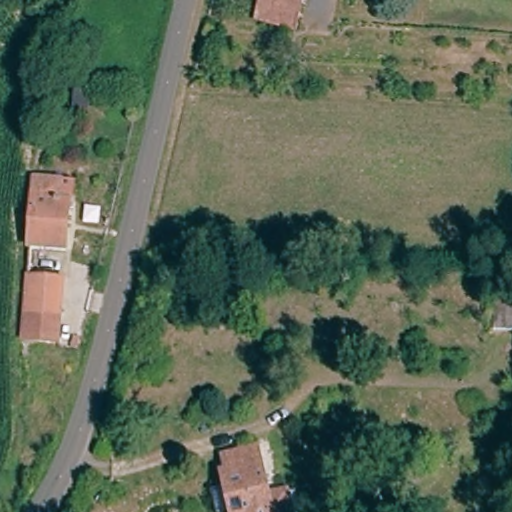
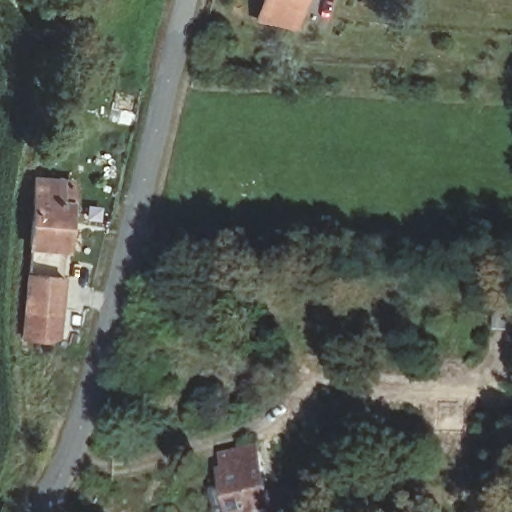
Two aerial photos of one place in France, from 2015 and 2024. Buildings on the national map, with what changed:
unchanged [(292,28),(257,18),(261,0),(300,0),(292,28)]
unchanged [(69,181),(62,249),(28,247),(33,177),(69,181)]
unchanged [(26,272),(60,275),(55,334),(22,332),(26,272)]
unchanged [(497,295),(512,295),(512,335),(495,334),(497,295)]
unchanged [(217,456),(215,442),(248,435),(257,484),(275,481),(279,499),(281,512),(224,512),(213,457),(217,456)]

